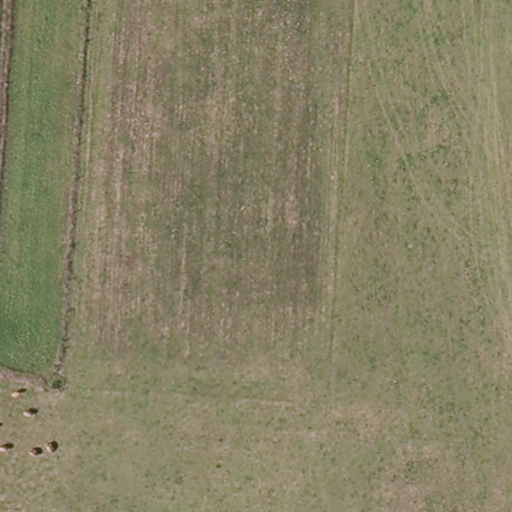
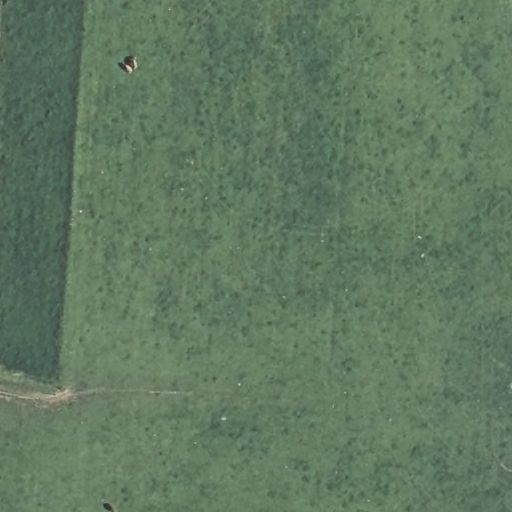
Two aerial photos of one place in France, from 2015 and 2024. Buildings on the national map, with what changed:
[]

